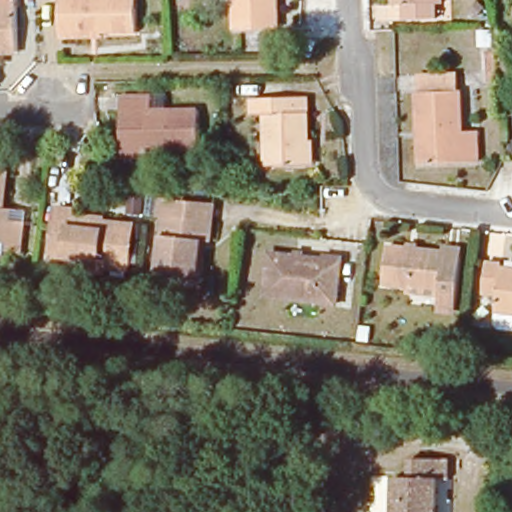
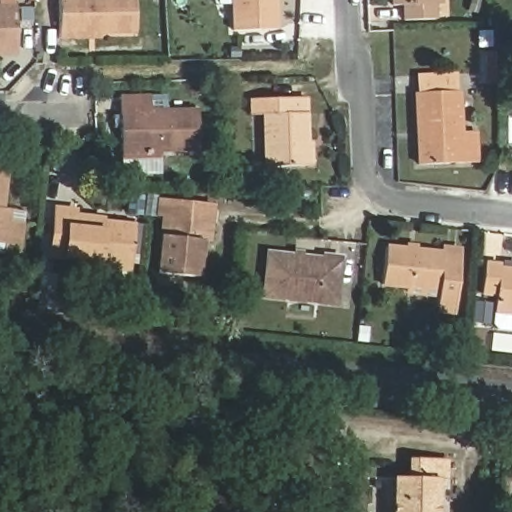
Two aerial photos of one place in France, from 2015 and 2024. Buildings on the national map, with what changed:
unchanged [(18,58),(0,58),(0,0),(17,0),(18,58)]
unchanged [(136,35),(101,35),(100,43),(61,45),(60,0),(135,0),(136,35)]
unchanged [(234,0),(277,0),(278,30),(235,31),(234,0)]
unchanged [(434,19),(405,20),(405,5),(394,5),(393,0),(434,0),(434,19)]
unchanged [(417,75),(457,73),(458,91),(462,91),(465,138),(477,138),(478,163),(420,164),(416,92),(418,92),(417,75)]
unchanged [(267,167),(266,115),(253,115),(253,99),(307,97),(310,166),(267,167)]
unchanged [(121,102),(165,101),(165,114),(198,113),(199,155),(122,157),(121,102)]
unchanged [(7,208),(3,244),(0,244),(0,173),(10,174),(7,208)]
unchanged [(210,240),(201,239),(198,276),(159,272),(164,227),(165,215),(161,214),(160,214),(160,217),(130,213),(133,191),(162,195),(162,201),(214,208),(210,240)]
unchanged [(30,208),(24,254),(0,253),(0,244),(3,244),(7,208),(30,208)]
unchanged [(62,215),(81,216),(81,221),(98,223),(103,226),(139,230),(135,271),(57,261),(62,215)]
unchanged [(456,304),(439,302),(440,291),(384,285),(387,246),(442,251),(442,254),(462,256),(456,304)]
unchanged [(266,296),(270,254),(341,261),(336,303),(266,296)]
unchanged [(493,332),(495,319),(496,307),(497,296),(483,294),(486,263),(502,265),(501,269),(512,270),(512,339),(497,337),(493,332)]
unchanged [(442,512),(399,512),(400,478),(415,478),(416,459),(453,461),(452,480),(443,480),(442,512)]

